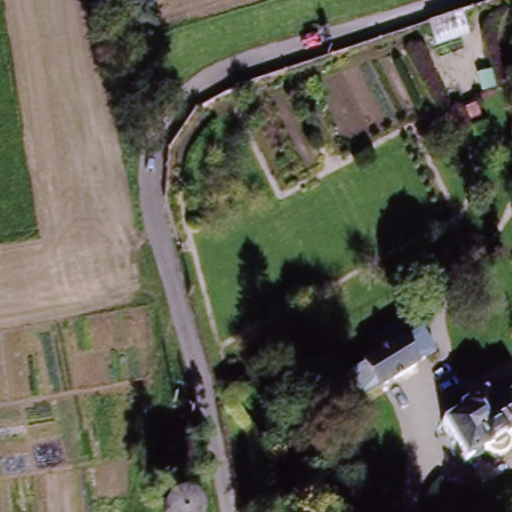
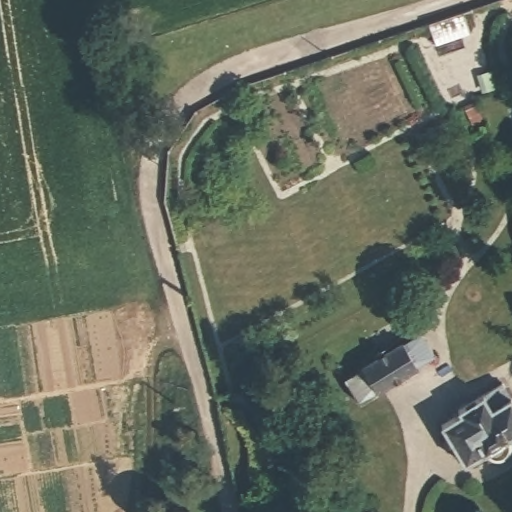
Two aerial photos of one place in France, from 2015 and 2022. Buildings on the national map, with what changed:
unchanged [(431,25),(463,15),(471,37),(436,48),(431,25)]
unchanged [(472,55),(487,51),(489,65),(476,70),(472,55)]
unchanged [(494,85),(480,87),(478,74),(491,71),(494,85)]
unchanged [(429,84),(441,80),(444,93),(434,97),(429,84)]
unchanged [(413,299),(432,290),(439,299),(419,309),(413,299)]
unchanged [(354,344),(379,329),(386,339),(361,354),(354,344)]
unchanged [(344,382),(351,378),(348,368),(365,358),(369,362),(416,333),(436,363),(361,407),(344,382)]
unchanged [(494,464),(489,458),(470,469),(462,456),(453,461),(441,444),(452,439),(447,433),(466,423),(461,413),(502,389),(512,403),(512,453),(494,464)]

